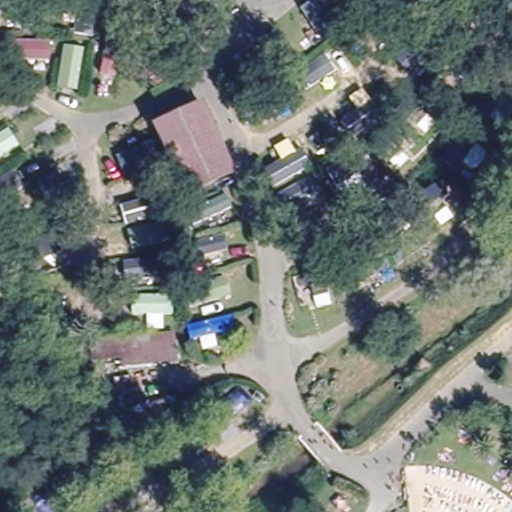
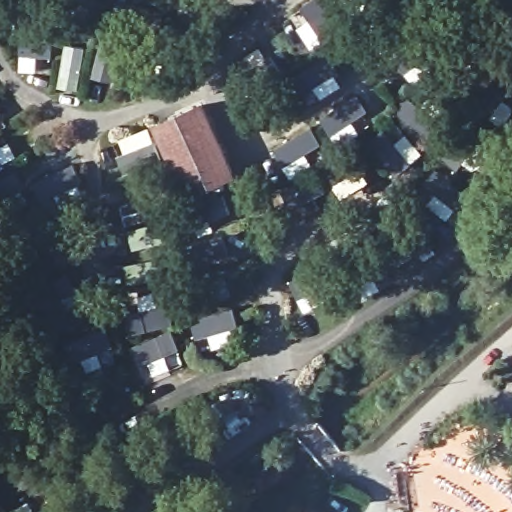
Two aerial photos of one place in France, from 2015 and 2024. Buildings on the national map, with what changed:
unchanged [(233,175),(183,199),(150,129),(200,104),(233,175)]
unchanged [(180,362),(125,369),(123,359),(96,361),(94,340),(177,332),(180,362)]

